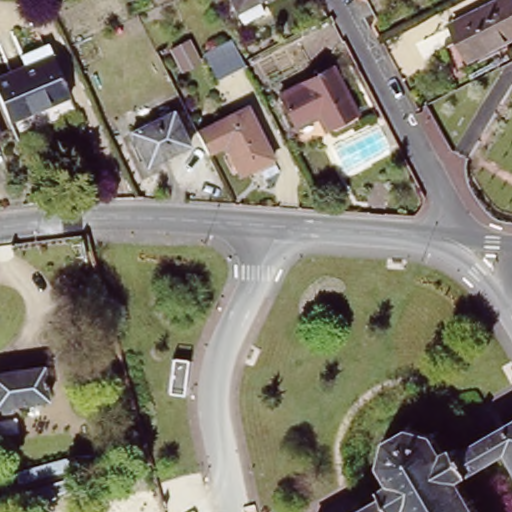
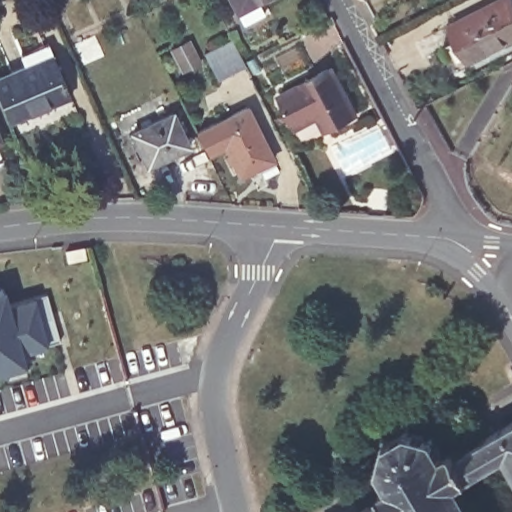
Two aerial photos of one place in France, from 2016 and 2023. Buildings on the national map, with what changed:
unchanged [(239,19),(229,0),(255,0),(260,8),(239,19)]
unchanged [(463,66),(445,30),(505,0),(507,0),(512,11),(512,42),(463,66)]
unchanged [(232,39),(245,63),(247,66),(218,81),(205,54),(232,39)]
unchanged [(190,40),(197,54),(201,63),(183,71),(178,63),(172,50),(190,40)]
unchanged [(20,60),(48,49),(53,61),(70,101),(10,128),(0,105),(0,83),(25,72),(20,60)]
unchanged [(357,109),(326,126),(318,111),(297,123),(280,91),(332,63),(357,109)]
unchanged [(147,168),(130,133),(174,111),(191,147),(147,168)]
unchanged [(254,172),(235,181),(220,151),(202,160),(192,137),(242,113),(268,165),(274,177),(260,184),(254,172)]
new [(47,346),(21,352),(25,365),(0,372),(0,289),(5,288),(10,304),(35,298),(47,294),(60,342),(47,346)]
demolished [(110,321),(99,324),(97,314),(92,315),(90,309),(85,310),(81,297),(102,290),(110,321)]
demolished [(47,401),(0,408),(0,373),(42,367),(47,401)]
unchanged [(407,512),(394,512),(386,496),(383,491),(393,485),(383,468),(375,466),(377,462),(384,464),(389,444),(382,442),(382,438),(390,440),(408,429),(410,422),(414,423),(412,430),(432,436),(433,429),(437,430),(435,437),(445,454),(455,448),(458,454),(467,477),(460,481),(472,500),(480,496),(481,498),(473,503),(479,512),(408,512),(407,512)]
unchanged [(506,454),(467,477),(458,454),(512,423),(512,464),(506,454)]
unchanged [(386,496),(394,512),(358,512),(386,496)]

